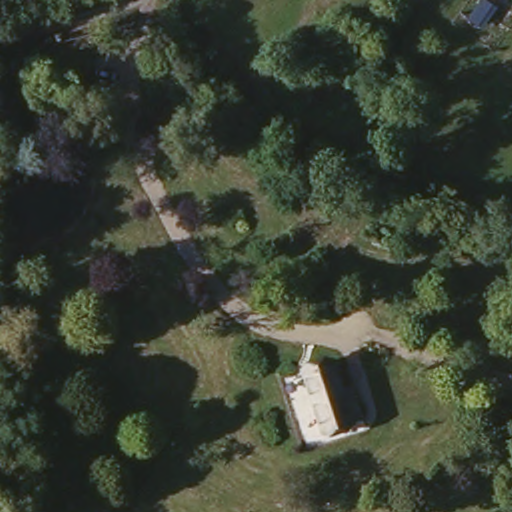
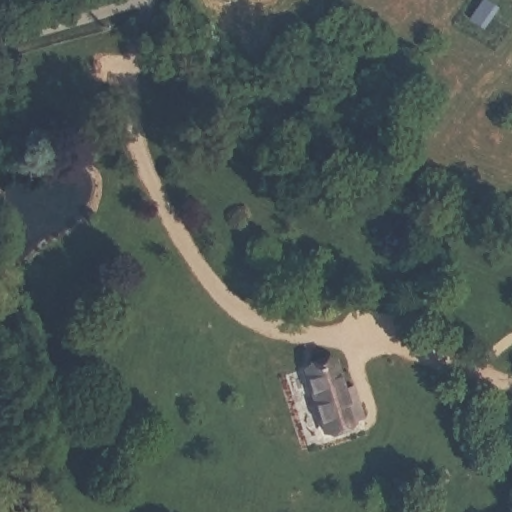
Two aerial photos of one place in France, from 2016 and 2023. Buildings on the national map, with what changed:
unchanged [(323,425),(305,369),(331,360),(339,384),(349,381),(359,412),(323,425)]

